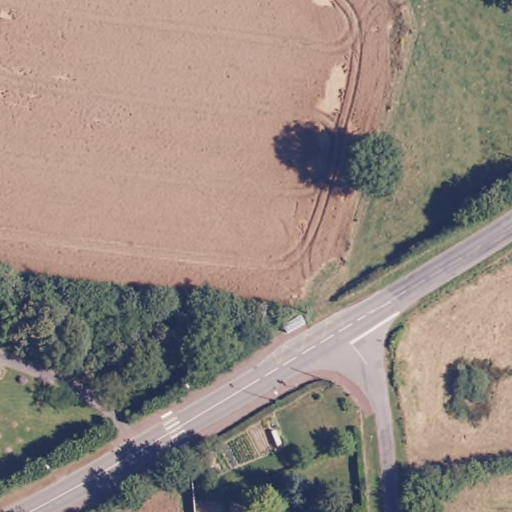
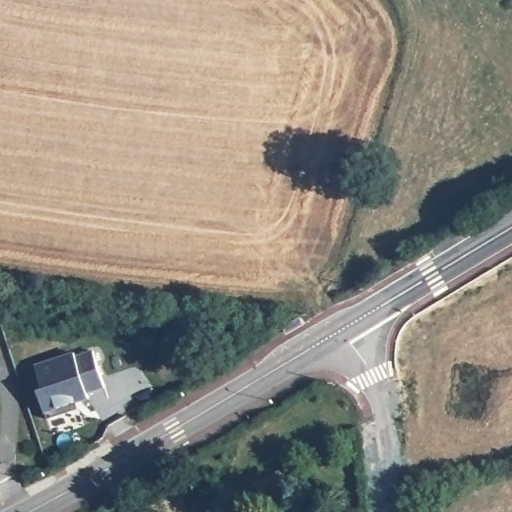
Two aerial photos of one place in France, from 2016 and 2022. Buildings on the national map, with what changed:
new [(88,392),(90,398),(76,403),(79,408),(48,416),(47,412),(40,390),(44,388),(36,365),(74,352),(76,357),(93,351),(105,387),(88,392)]

